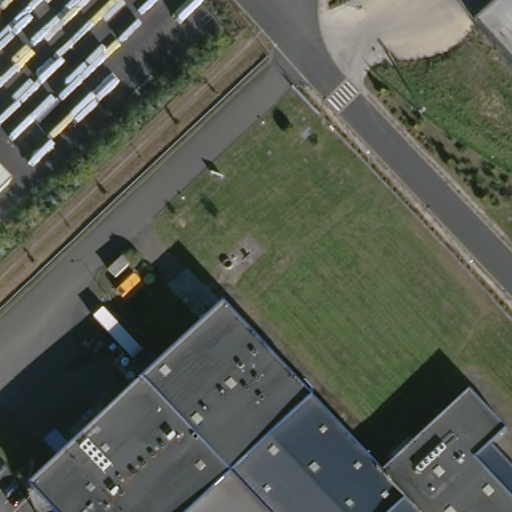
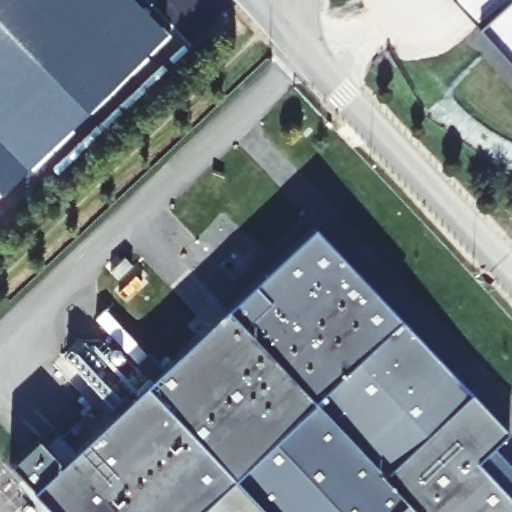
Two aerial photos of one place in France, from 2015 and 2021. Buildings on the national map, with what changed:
new [(1,188),(0,186),(0,0),(136,0),(168,33),(1,188)]
unchanged [(481,29),(454,0),(512,0),(512,64),(481,29)]
unchanged [(0,197),(0,186),(6,192),(0,197)]
new [(230,314),(314,229),(476,400),(388,482),(230,314)]
unchanged [(131,263),(116,277),(111,271),(111,268),(124,255),(131,263)]
unchanged [(38,495),(12,466),(38,440),(50,450),(63,438),(80,456),(153,387),(136,369),(149,356),(166,375),(230,314),(388,482),(476,400),(512,439),(512,440),(496,455),(482,469),(512,501),(512,512),(415,512),(413,509),(409,512),(51,512),(36,497),(66,468),(38,495)]
unchanged [(496,455),(512,473),(512,501),(482,469),(496,455)]

